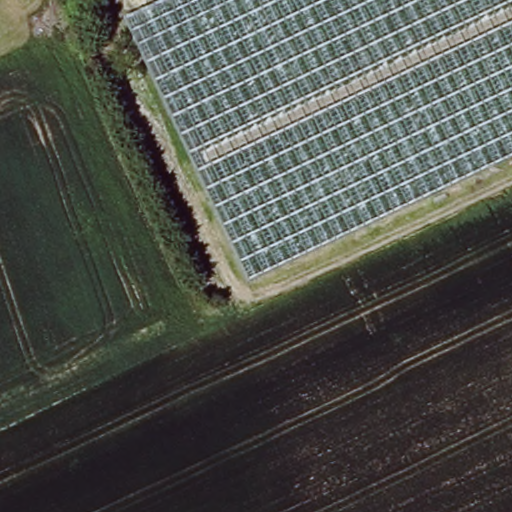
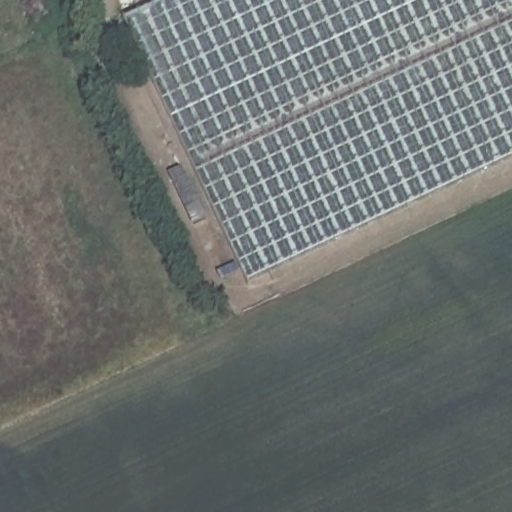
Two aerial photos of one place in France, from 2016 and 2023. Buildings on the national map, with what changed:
unchanged [(115,24),(162,0),(512,0),(512,190),(238,317),(115,24)]

